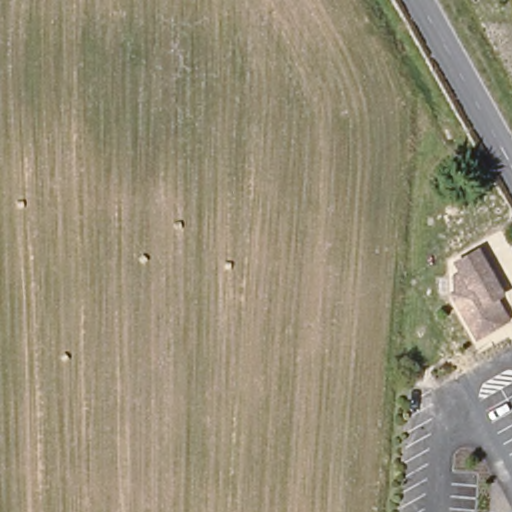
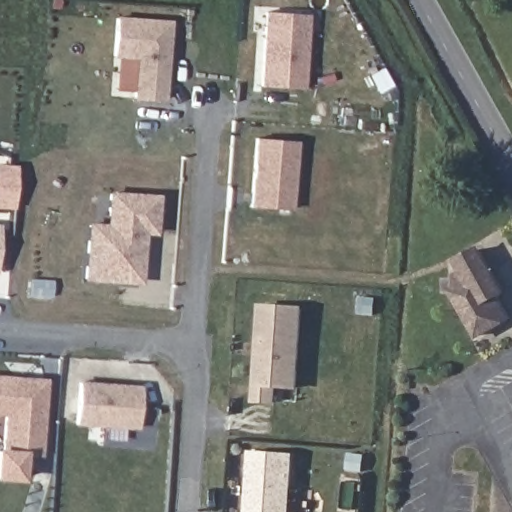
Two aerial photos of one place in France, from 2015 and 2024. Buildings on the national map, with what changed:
new [(260,12),(301,14),(296,89),(256,86),(260,12)]
new [(135,99),(138,59),(113,57),(116,20),(169,24),(162,101),(135,99)]
new [(250,208),(256,139),(294,142),(288,211),(250,208)]
new [(13,210),(0,210),(0,167),(14,167),(13,210)]
new [(95,224),(113,225),(115,192),(161,196),(159,231),(147,230),(146,243),(144,281),(91,277),(94,239),(95,224)]
unchanged [(455,307),(444,289),(442,270),(449,266),(442,254),(464,240),(492,285),(488,289),(499,309),(491,315),(469,330),(455,307)]
new [(297,390),(277,388),(276,404),(252,402),(257,304),(303,307),(297,390)]
new [(32,379),(49,380),(43,455),(8,452),(10,414),(0,413),(0,377),(16,378),(32,379)]
new [(84,383),(143,387),(139,428),(80,423),(84,383)]
new [(289,512),(245,512),(249,451),(293,454),(289,512)]

